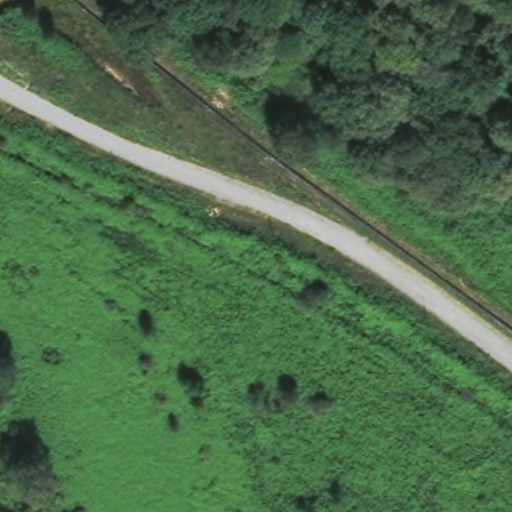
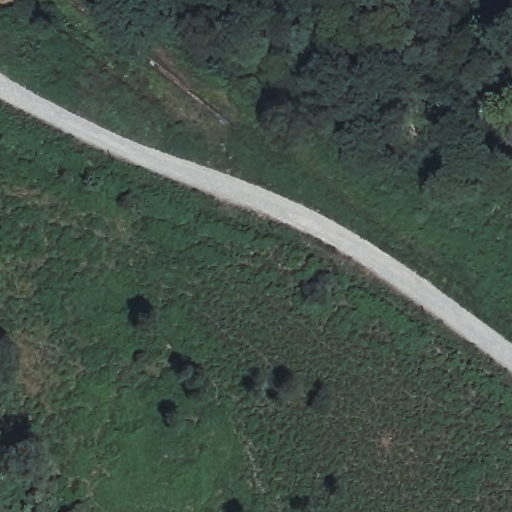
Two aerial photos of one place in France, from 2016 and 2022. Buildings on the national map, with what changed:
unchanged [(0,0),(7,0),(0,11),(0,0)]

